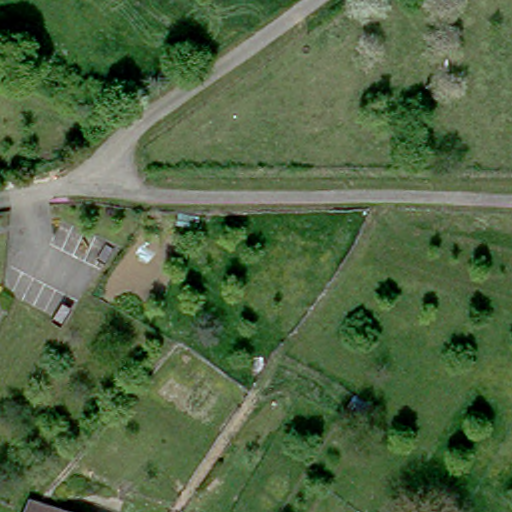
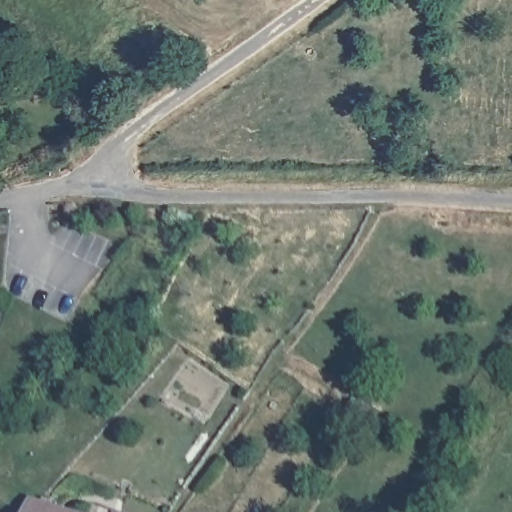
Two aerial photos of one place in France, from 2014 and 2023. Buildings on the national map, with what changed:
unchanged [(31,494),(35,483),(45,487),(41,497),(91,512),(24,512),(26,506),(31,494)]

